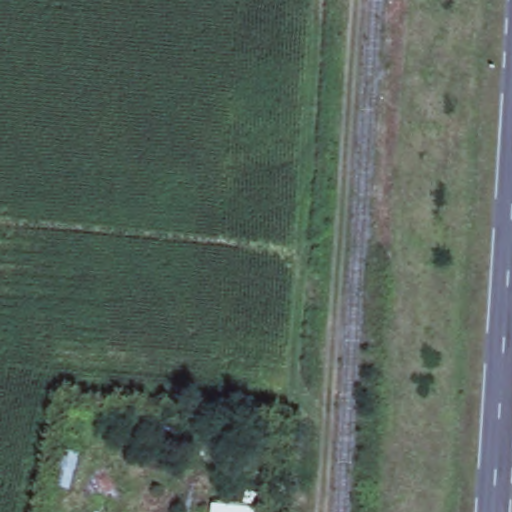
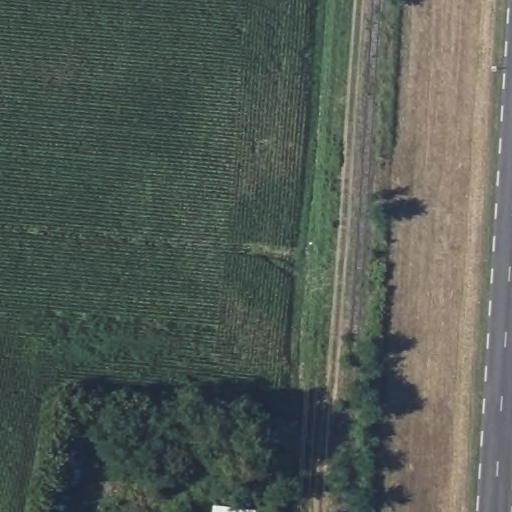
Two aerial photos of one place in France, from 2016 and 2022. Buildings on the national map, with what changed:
unchanged [(68,487),(51,482),(59,446),(78,451),(68,487)]
unchanged [(258,511),(258,512),(217,512),(217,505),(258,511)]

